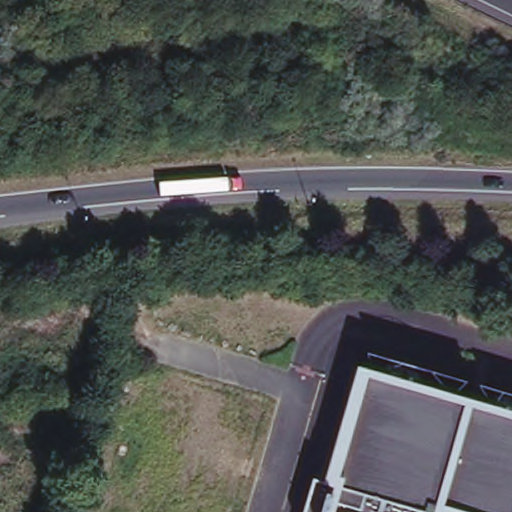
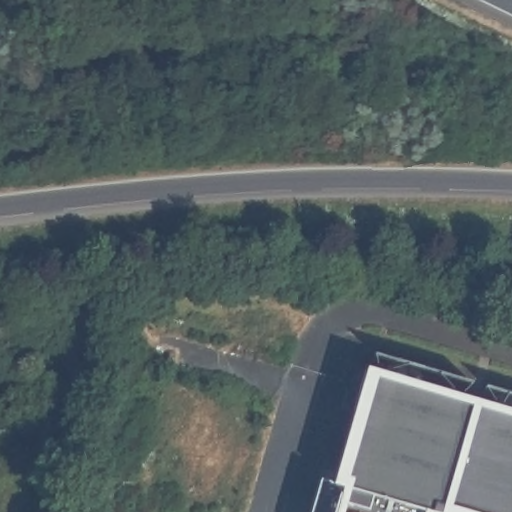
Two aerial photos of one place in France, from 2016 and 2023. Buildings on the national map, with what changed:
unchanged [(322,480),(334,483),(355,410),(344,407),(348,390),(356,365),(367,368),(512,411),(512,512),(313,512),(322,480)]

